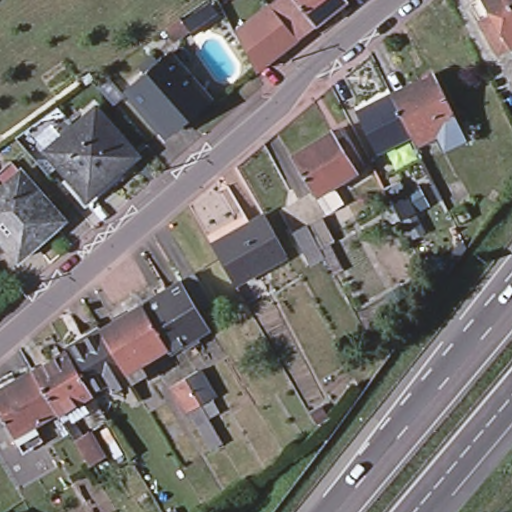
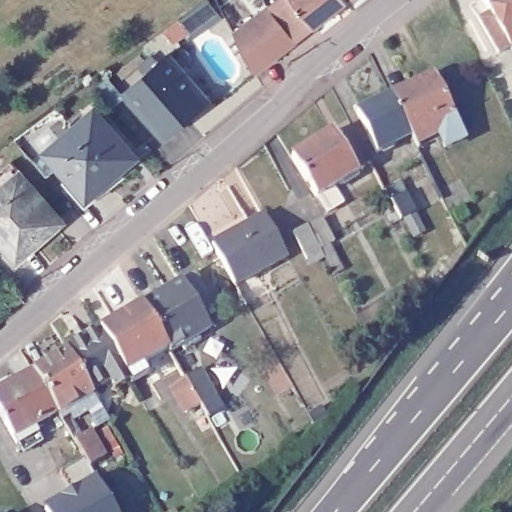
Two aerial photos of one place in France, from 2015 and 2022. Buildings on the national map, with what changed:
unchanged [(346,0),(321,20),(320,20),(303,34),(261,67),(242,26),(274,0),(346,0)]
unchanged [(510,67),(499,49),(490,54),(471,21),(481,16),(472,0),(512,0),(512,66),(510,67)]
unchanged [(163,30),(178,19),(187,31),(172,42),(163,30)]
unchanged [(166,52),(206,96),(185,115),(186,117),(171,130),(155,112),(150,117),(125,91),(166,52)]
unchanged [(387,99),(430,77),(459,137),(440,147),(432,134),(410,145),(405,136),(387,99)]
unchanged [(373,152),(353,112),(385,95),(387,99),(405,136),(373,152)]
unchanged [(95,110),(136,156),(120,171),(116,166),(85,194),(48,152),(95,110)]
unchanged [(321,199),(317,202),(292,162),(300,157),(325,142),(332,137),(342,151),(348,147),(363,174),(346,184),(321,199)]
unchanged [(30,245),(15,259),(0,243),(0,169),(6,162),(7,162),(0,153),(0,146),(9,140),(28,162),(15,173),(55,217),(27,242),(30,245)]
unchanged [(391,204),(406,196),(416,214),(401,222),(391,204)]
unchanged [(211,244),(263,215),(285,255),(234,283),(211,244)]
unchanged [(310,226),(321,220),(333,242),(323,247),(310,226)]
unchanged [(293,234),(307,227),(321,253),(307,261),(293,234)]
unchanged [(176,282),(189,275),(206,304),(194,312),(204,330),(163,353),(160,348),(136,306),(176,282)]
unchanged [(125,383),(123,380),(107,389),(101,381),(85,391),(60,350),(95,330),(136,306),(160,348),(134,364),(140,375),(125,383)]
unchanged [(28,372),(27,370),(60,350),(85,391),(86,393),(53,414),(51,410),(28,372)]
unchanged [(0,386),(27,370),(28,372),(51,410),(7,436),(0,424),(0,386)]
unchanged [(185,413),(172,391),(171,388),(185,381),(196,373),(211,399),(200,406),(205,415),(195,421),(188,412),(185,413)]
unchanged [(73,440),(88,432),(105,457),(90,467),(73,440)]
new [(90,467),(95,476),(117,512),(44,512),(41,508),(70,490),(60,471),(85,458),(90,467)]

